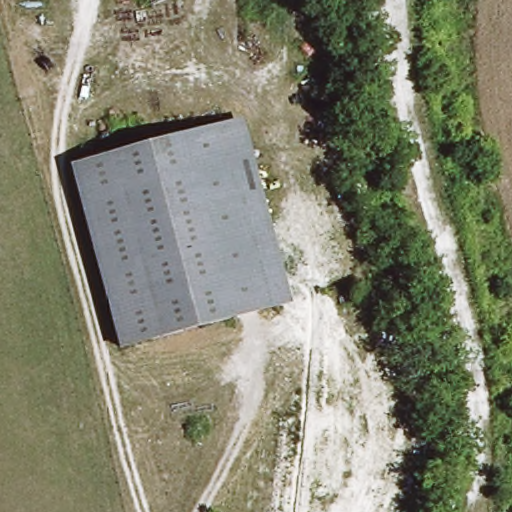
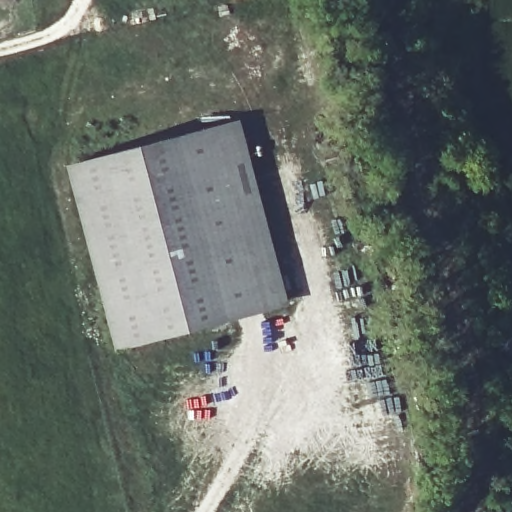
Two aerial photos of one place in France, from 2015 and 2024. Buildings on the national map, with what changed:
unchanged [(116,343),(66,169),(201,131),(219,125),(240,118),(249,144),(287,274),(293,294),(266,301),(185,323),(116,343)]

